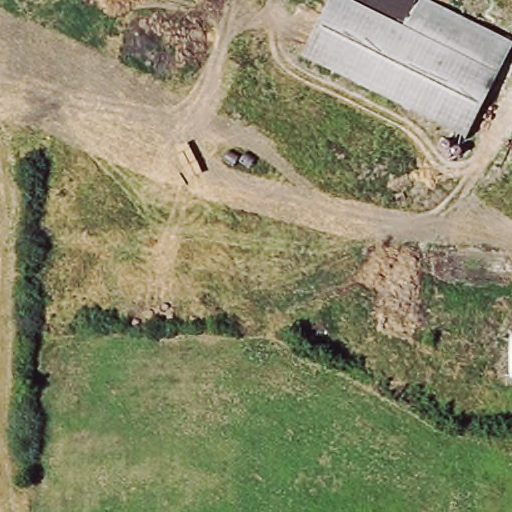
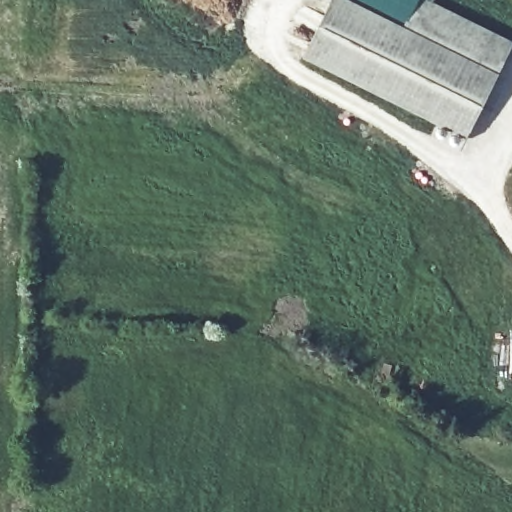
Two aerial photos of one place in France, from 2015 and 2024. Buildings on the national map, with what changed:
unchanged [(420,0),(429,0),(512,44),(512,55),(468,140),(306,56),(334,0),(352,0),(406,28),(420,0)]
unchanged [(406,28),(352,0),(420,0),(406,28)]

